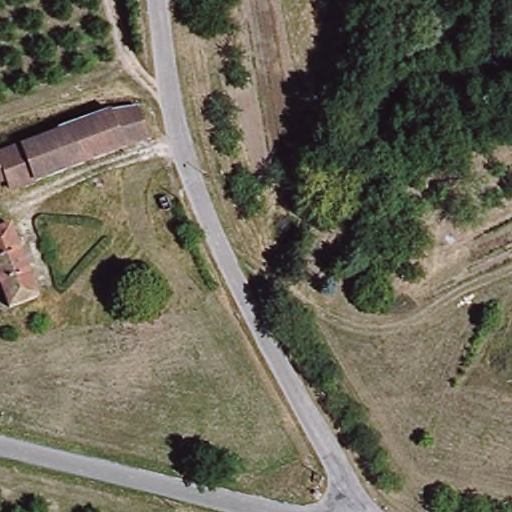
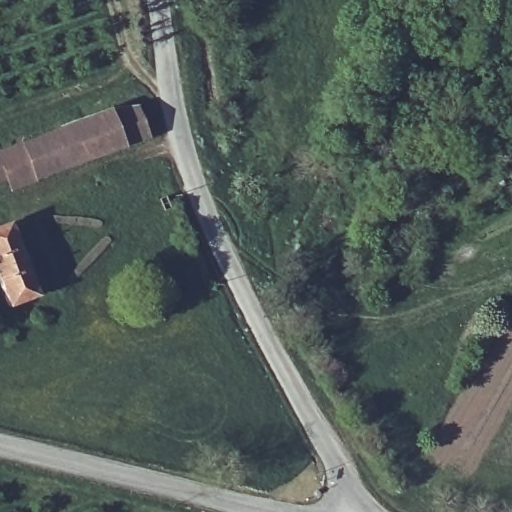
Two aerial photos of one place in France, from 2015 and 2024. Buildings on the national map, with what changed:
unchanged [(6,191),(3,180),(0,181),(0,149),(137,102),(145,140),(6,191)]
unchanged [(9,307),(0,280),(0,229),(12,226),(36,297),(9,307)]

